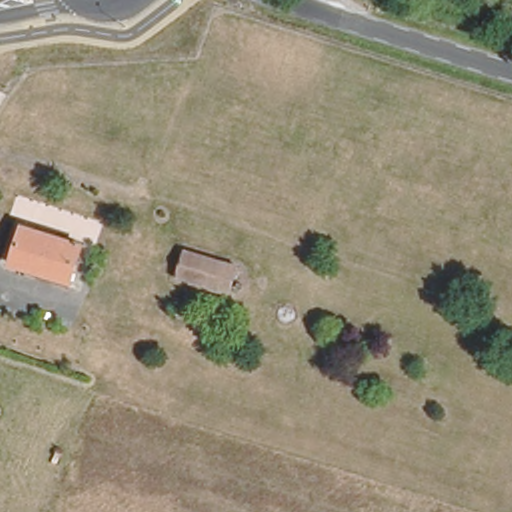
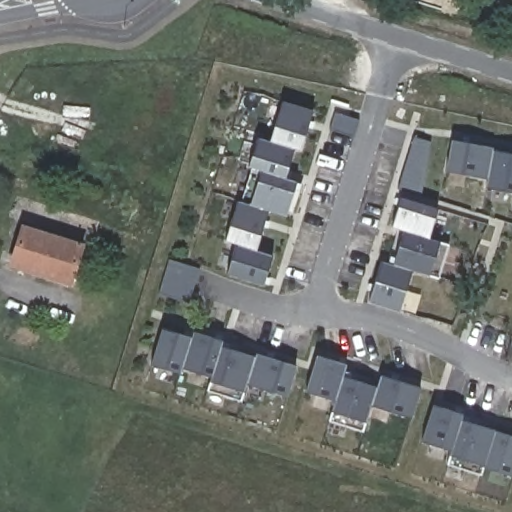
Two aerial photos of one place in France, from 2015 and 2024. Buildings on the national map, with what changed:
new [(257,137),(269,141),(274,126),(282,100),(314,110),(306,136),(301,151),(295,149),(288,167),(285,179),(297,182),(294,193),(286,217),(268,211),(260,236),(255,251),(273,256),(268,272),(263,286),(226,274),(230,260),(235,245),(225,241),(230,226),(237,201),(239,202),(250,167),(248,167),(251,156),(257,137)]
new [(353,137),(329,130),(335,112),(359,120),(353,137)]
new [(430,142),(421,197),(396,189),(413,136),(430,142)]
new [(485,188),(486,179),(461,175),(445,172),(450,140),(467,142),(492,147),(492,150),(511,153),(512,153),(512,193),(505,192),(485,188)]
new [(392,227),(398,207),(401,197),(437,209),(435,219),(428,238),(440,242),(449,245),(438,279),(430,276),(412,271),(406,291),(400,312),(368,302),(375,281),(381,261),(393,265),(399,247),(404,231),(392,227)]
unchanged [(6,260),(18,222),(75,241),(65,277),(6,260)]
new [(200,269),(188,303),(157,294),(169,259),(200,269)]
new [(296,366),(287,397),(271,392),(246,385),(244,392),(241,402),(206,392),(209,382),(210,377),(200,375),(181,368),(180,374),(165,370),(150,365),(161,328),(176,332),(191,337),(192,331),(212,337),(222,340),(220,346),(230,349),(255,357),(255,353),(281,361),(296,366)]
new [(334,401),(316,396),(305,392),(315,356),(327,358),(345,364),(341,376),(357,381),(376,386),(380,374),(400,380),(421,386),(411,418),(390,412),(370,407),(366,423),(363,432),(328,422),(331,412),(334,401)]
new [(441,447),(420,442),(431,405),(452,411),(462,413),(460,419),(471,422),(495,429),(495,431),(509,435),(512,435),(512,476),(497,472),(483,467),(481,476),(446,466),(450,456),(451,451),(441,447)]

